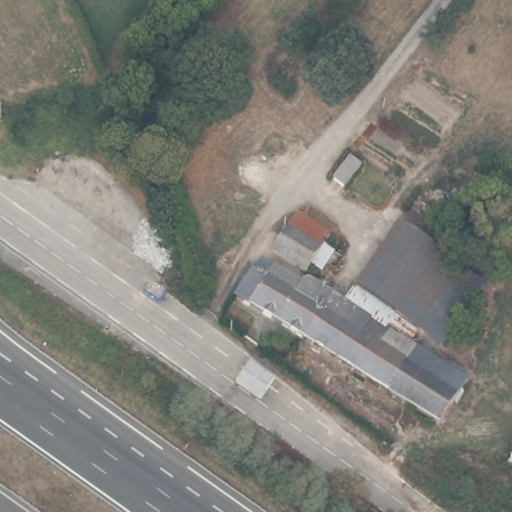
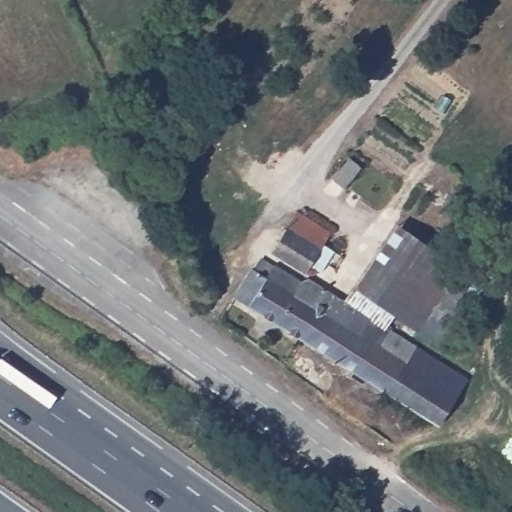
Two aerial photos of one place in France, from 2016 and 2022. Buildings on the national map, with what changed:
unchanged [(403,221),(433,177),(472,204),(442,247),(403,221)]
unchanged [(335,227),(329,239),(340,245),(331,260),(319,252),(310,267),(275,245),(299,205),(335,227)]
unchanged [(464,262),(421,325),(360,283),(403,221),(442,247),(464,262)]
unchanged [(260,265),(263,261),(268,260),(275,262),(278,257),(308,276),(311,271),(372,310),(373,307),(394,320),(393,322),(471,371),(442,420),(237,291),(255,261),(260,265)]

